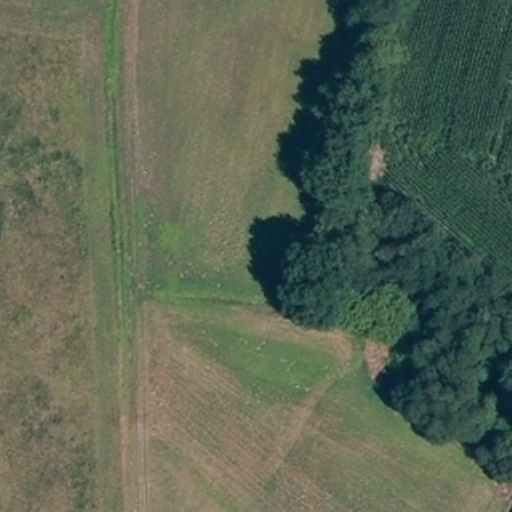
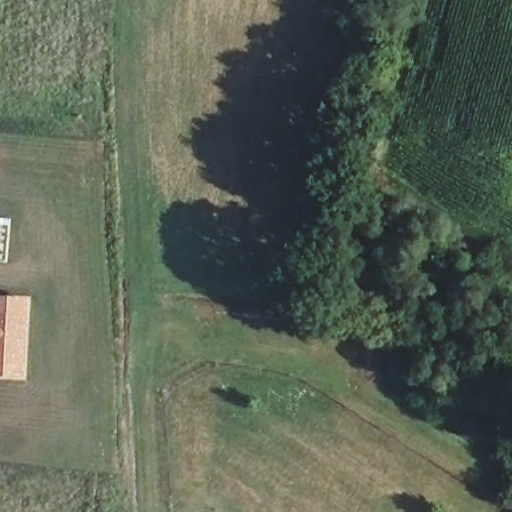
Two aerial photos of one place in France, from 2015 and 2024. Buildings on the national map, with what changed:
new [(31,298),(26,378),(0,378),(0,297),(31,298)]
demolished [(512,505),(512,512),(508,512),(512,505)]

